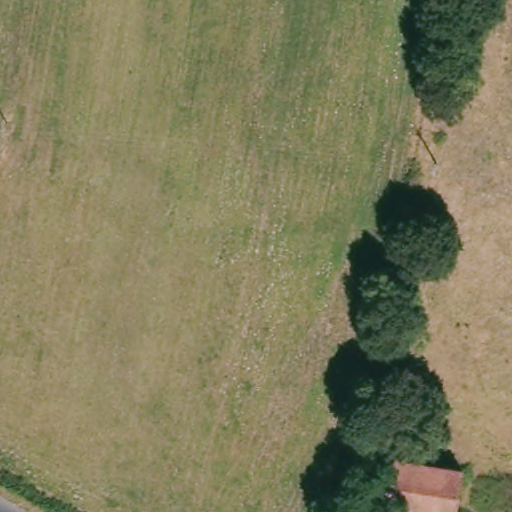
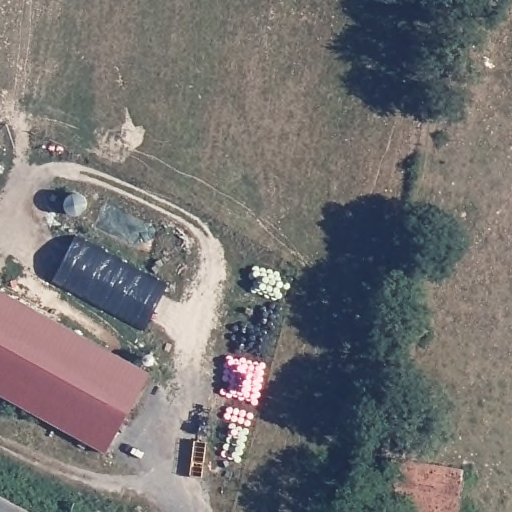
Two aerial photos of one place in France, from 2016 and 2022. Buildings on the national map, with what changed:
new [(52,280),(76,235),(167,286),(144,330),(52,280)]
new [(106,452),(0,394),(0,290),(150,371),(106,452)]
unchanged [(397,458),(463,469),(456,512),(391,512),(388,511),(397,458)]

